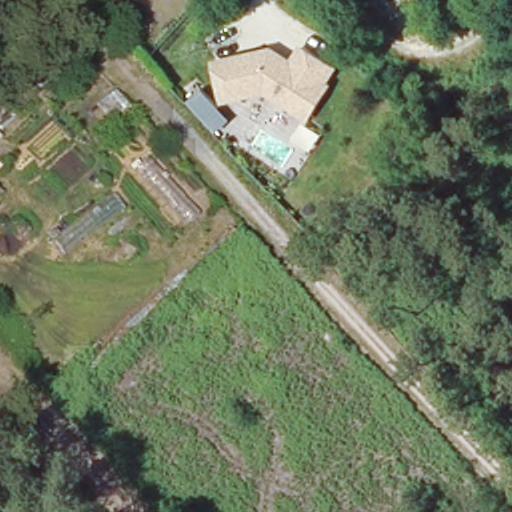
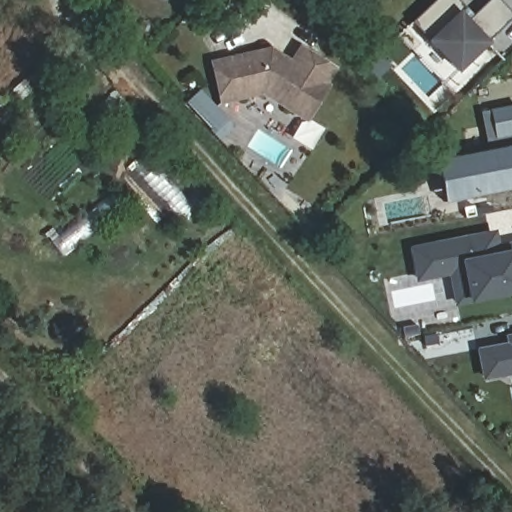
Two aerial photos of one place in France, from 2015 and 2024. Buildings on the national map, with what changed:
new [(492,42),(458,73),(413,22),(436,0),(459,0),(467,9),(464,12),(469,19),(490,0),(502,0),(512,10),(512,18),(489,40),(492,42)]
unchanged [(329,82),(331,85),(307,122),(264,93),(220,105),(211,61),(272,47),(291,59),(300,45),(339,67),(329,82)]
unchanged [(215,132),(188,102),(201,90),(229,120),(215,132)]
new [(490,112),(512,107),(512,187),(454,199),(444,201),(436,162),(446,160),(488,151),(480,113),(490,112)]
new [(495,250),(512,246),(512,293),(456,305),(450,273),(417,281),(411,251),(489,236),(493,235),(495,250)]
new [(480,352),(510,347),(509,339),(512,338),(512,373),(485,378),(480,352)]

